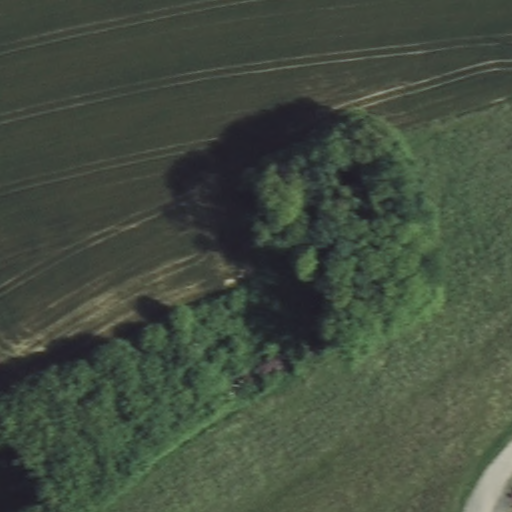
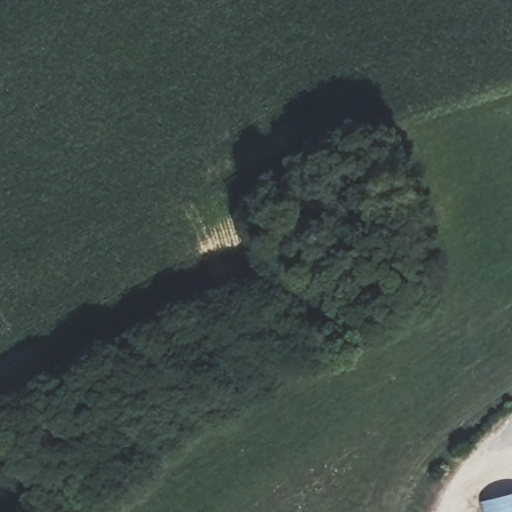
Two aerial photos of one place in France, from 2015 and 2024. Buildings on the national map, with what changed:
new [(512,492),(512,512),(479,512),(477,501),(512,492)]

